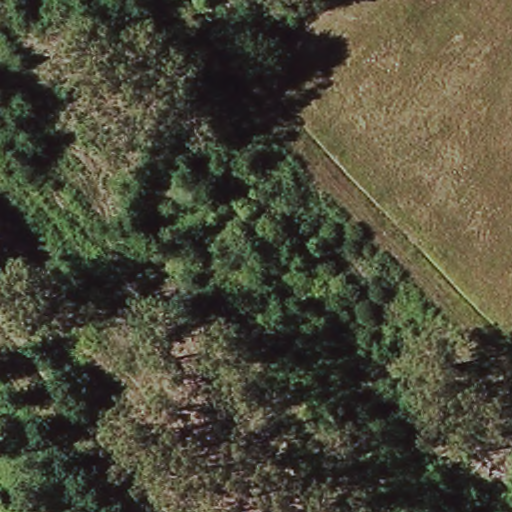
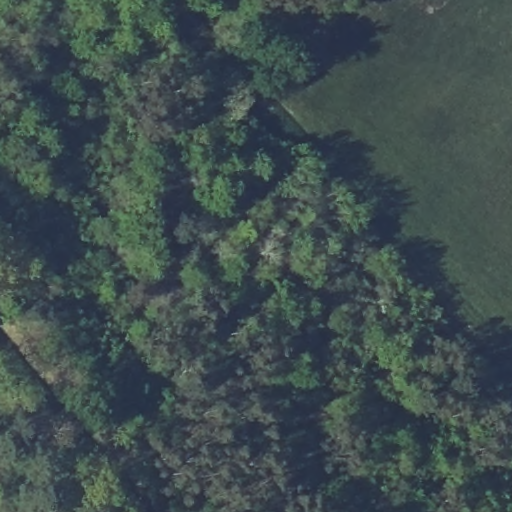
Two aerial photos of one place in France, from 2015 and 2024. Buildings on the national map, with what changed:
[]

